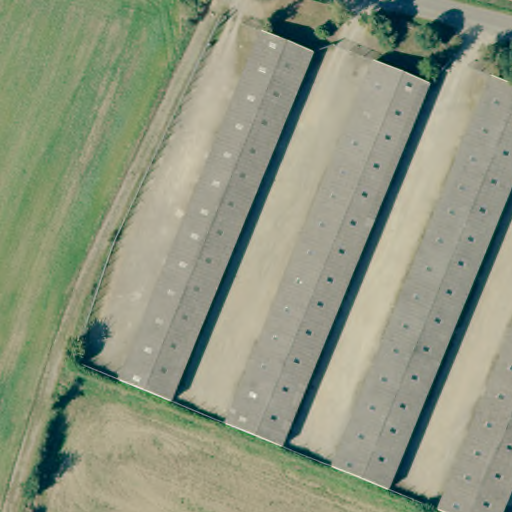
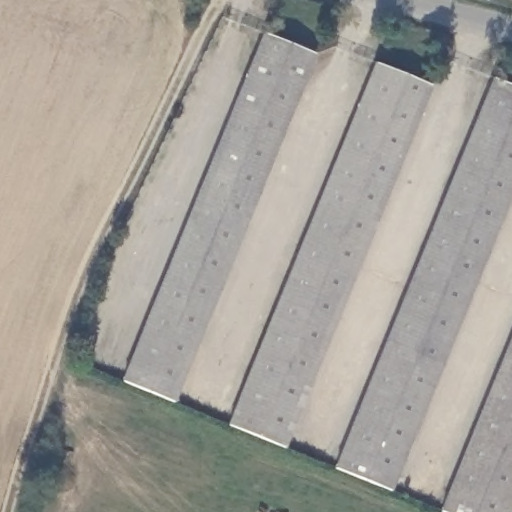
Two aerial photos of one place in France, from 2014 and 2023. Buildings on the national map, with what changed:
unchanged [(317,56),(173,401),(122,379),(266,34),(317,56)]
unchanged [(437,86),(285,450),(227,425),(378,62),(437,86)]
unchanged [(512,192),(388,490),(336,468),(500,76),(512,82),(512,192)]
unchanged [(441,512),(512,345),(512,497),(506,512),(441,512)]

